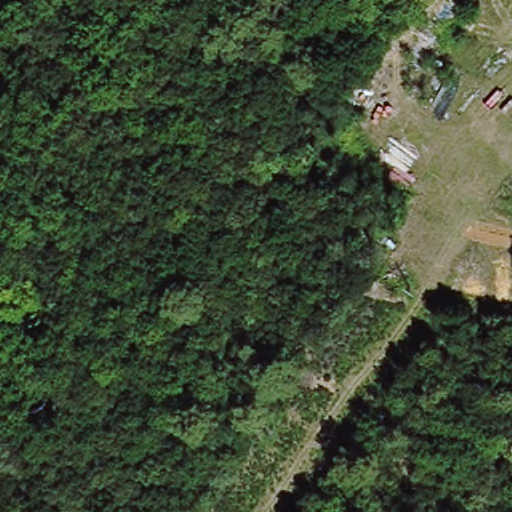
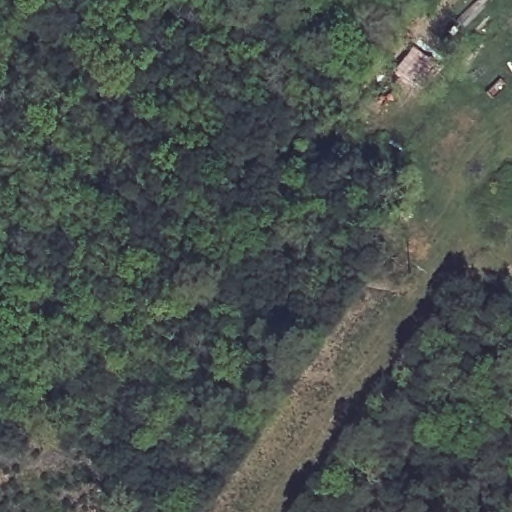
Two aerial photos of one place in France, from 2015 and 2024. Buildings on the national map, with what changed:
[]

